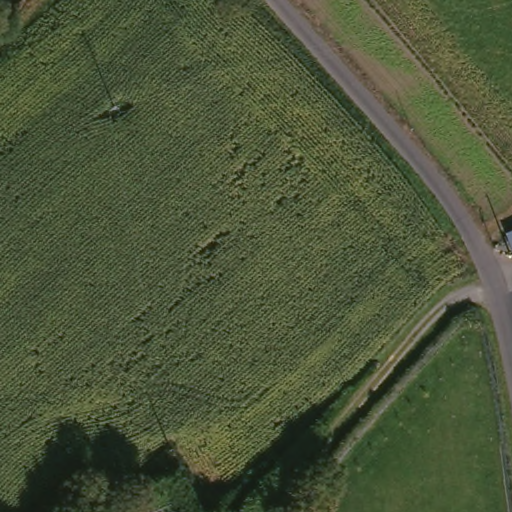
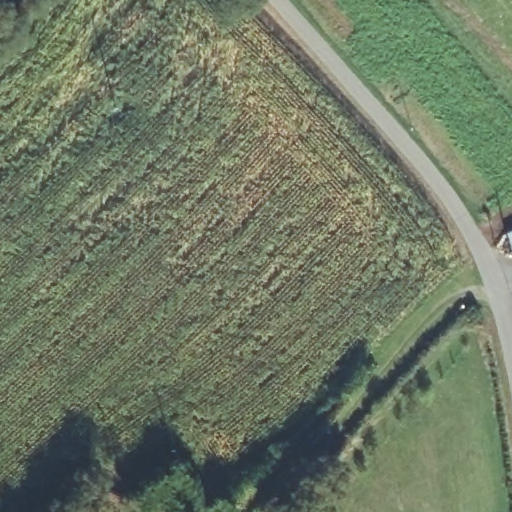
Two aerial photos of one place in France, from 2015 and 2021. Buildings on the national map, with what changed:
unchanged [(512,231),(512,249),(507,234),(512,231)]

